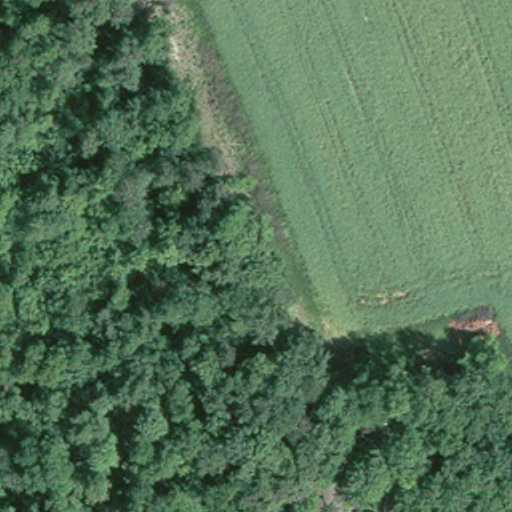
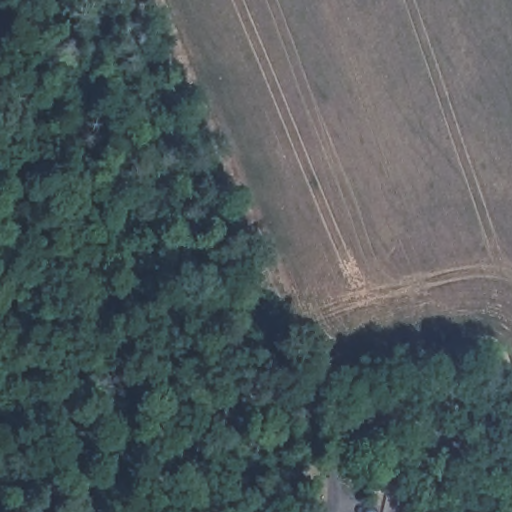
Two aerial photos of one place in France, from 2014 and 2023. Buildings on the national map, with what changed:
unchanged [(376,390),(388,420),(336,438),(325,408),(376,390)]

